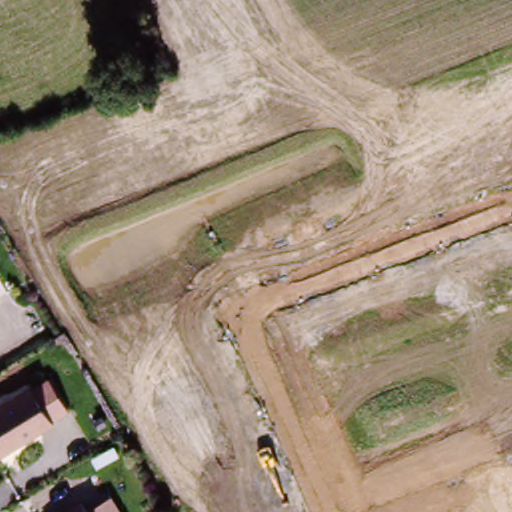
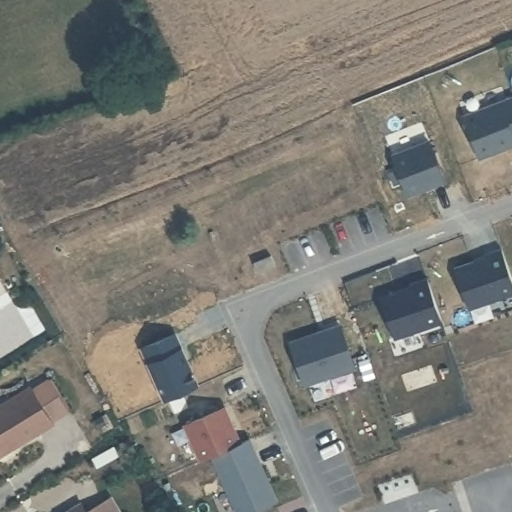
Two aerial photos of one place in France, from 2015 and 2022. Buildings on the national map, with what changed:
new [(512,142),(480,155),(464,114),(512,95),(512,142)]
new [(429,138),(444,179),(408,193),(392,152),(429,138)]
new [(485,252),(502,246),(512,277),(512,290),(469,305),(456,265),(486,255),(485,252)]
new [(411,285),(410,282),(427,276),(442,318),(395,335),(381,295),(411,285)]
new [(340,323),(354,365),(305,381),(290,340),(340,323)]
new [(165,398),(142,346),(174,331),(198,384),(165,398)]
unchanged [(0,447),(0,406),(36,385),(53,422),(3,451),(0,447)]
new [(225,404),(241,440),(213,452),(200,458),(184,422),(225,404)]
new [(249,436),(276,500),(248,512),(239,512),(213,452),(241,440),(249,436)]
unchanged [(94,512),(74,512),(88,504),(94,512)]

